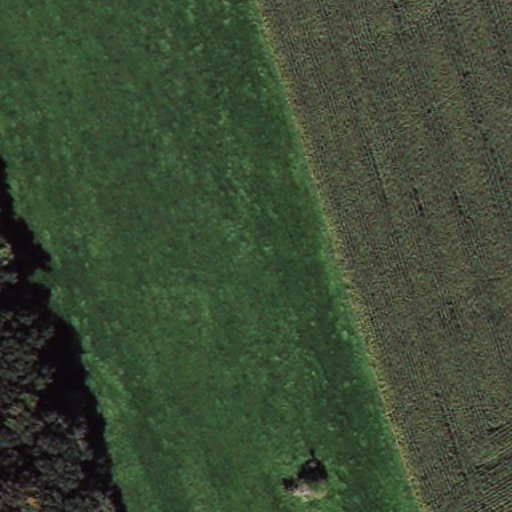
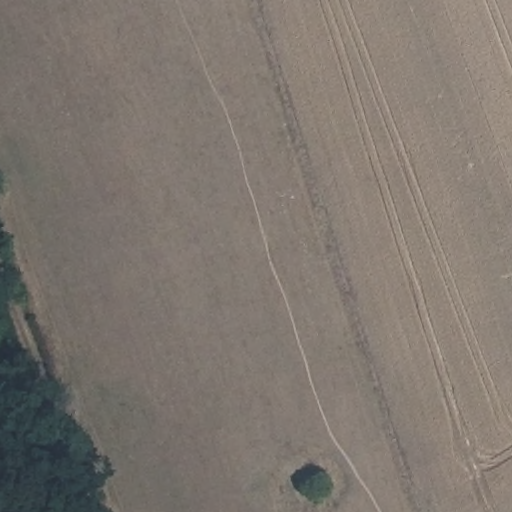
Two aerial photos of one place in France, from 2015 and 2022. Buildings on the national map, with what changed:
[]

